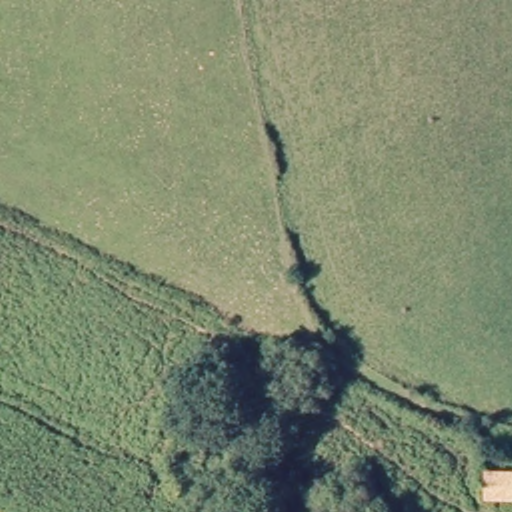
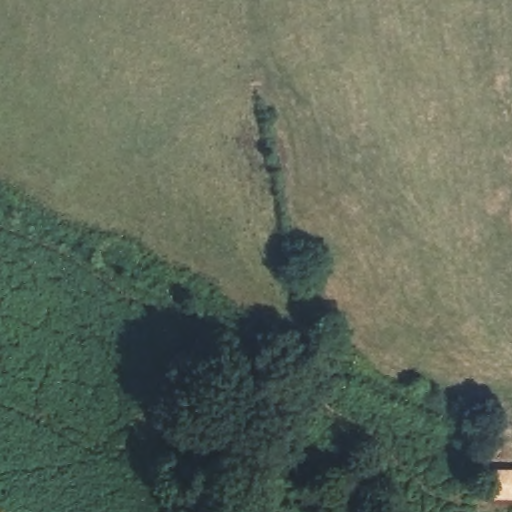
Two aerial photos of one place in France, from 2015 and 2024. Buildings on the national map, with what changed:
unchanged [(512,502),(485,502),(486,472),(512,473),(512,502)]

